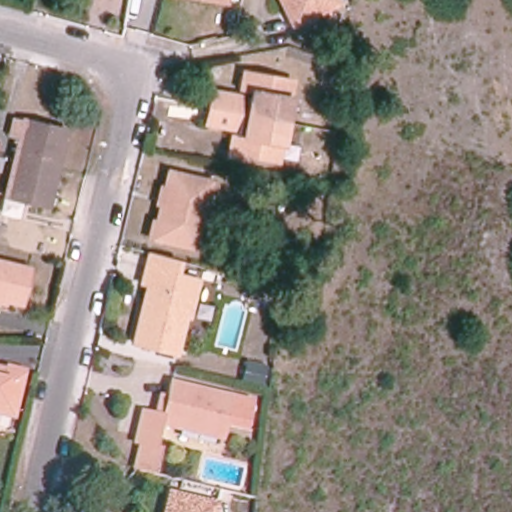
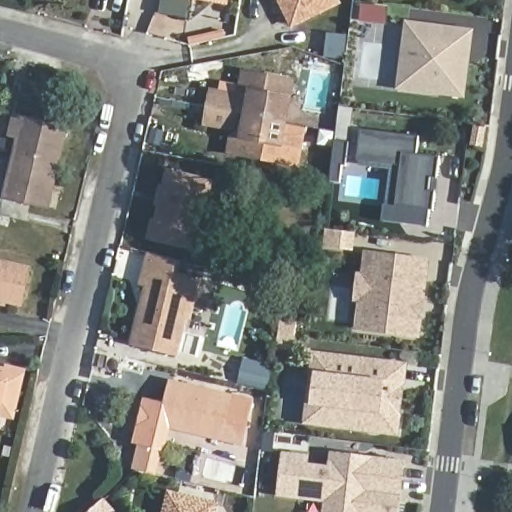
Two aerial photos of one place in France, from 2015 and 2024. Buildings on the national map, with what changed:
unchanged [(210,0),(222,0),(222,2),(210,0)]
unchanged [(339,2),(293,25),(281,0),(338,0),(339,2)]
new [(396,89),(405,20),(475,29),(466,98),(396,89)]
unchanged [(242,114),(247,91),(237,89),(240,72),(289,81),(282,121),(242,114)]
unchanged [(204,107),(207,91),(237,96),(234,113),(231,129),(202,124),(204,107)]
unchanged [(226,152),(229,135),(238,137),(242,114),(282,121),(275,161),(226,152)]
unchanged [(16,159),(25,121),(67,130),(57,168),(16,159)]
new [(434,211),(396,206),(401,166),(357,161),(362,129),(420,137),(418,154),(441,157),(438,179),(437,191),(434,211)]
unchanged [(7,197),(16,159),(57,168),(49,207),(7,197)]
unchanged [(211,181),(196,248),(155,239),(170,172),(211,181)]
new [(353,330),(363,251),(431,259),(421,339),(353,330)]
unchanged [(144,285),(139,284),(146,253),(175,261),(171,274),(191,278),(182,317),(172,354),(130,344),(144,285)]
unchanged [(0,295),(0,258),(26,264),(17,299),(0,295)]
new [(327,424),(332,379),(317,377),(320,354),(395,364),(389,409),(398,410),(396,432),(327,424)]
unchanged [(13,416),(0,413),(0,369),(22,375),(13,416)]
unchanged [(132,443),(139,412),(152,415),(158,416),(162,397),(166,382),(229,397),(252,403),(247,431),(222,425),(219,439),(158,424),(152,448),(155,448),(149,474),(132,470),(137,444),(132,443)]
new [(276,496),(282,451),(310,454),(310,463),(329,465),(331,451),(405,460),(399,512),(322,512),(323,502),(276,496)]
unchanged [(161,512),(166,493),(212,504),(210,512),(161,512)]
new [(111,512),(96,512),(104,505),(111,512)]

